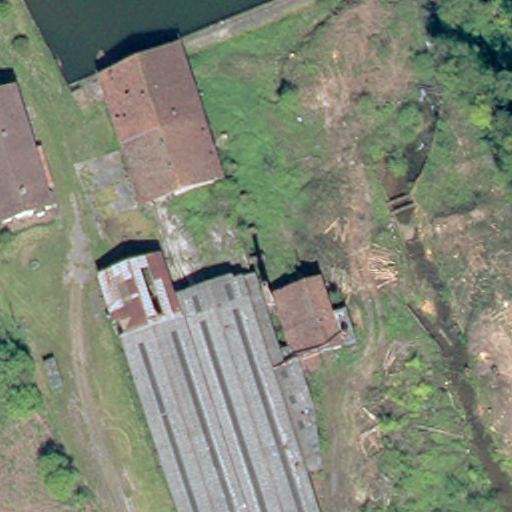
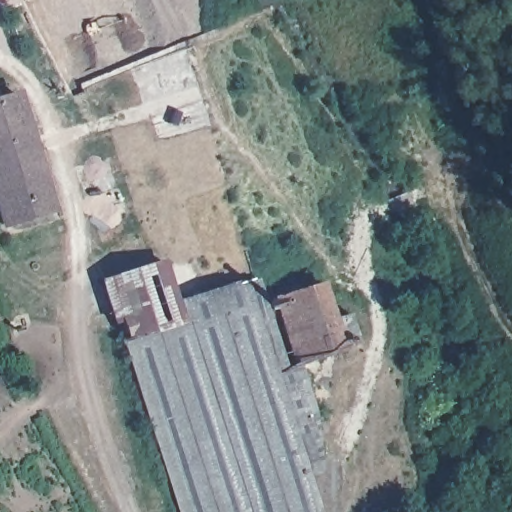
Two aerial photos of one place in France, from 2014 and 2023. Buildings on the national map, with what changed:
demolished [(182,50),(210,141),(160,157),(128,168),(97,84),(182,50)]
unchanged [(12,81),(17,101),(0,104),(0,84),(12,81)]
unchanged [(44,215),(0,226),(0,104),(17,101),(44,215)]
demolished [(210,141),(230,197),(188,212),(180,214),(160,157),(210,141)]
unchanged [(335,319),(348,316),(357,346),(303,365),(317,412),(325,472),(310,477),(320,512),(178,512),(123,341),(119,322),(113,322),(100,281),(165,260),(177,300),(245,281),(259,279),(263,297),(322,282),(335,319)]

